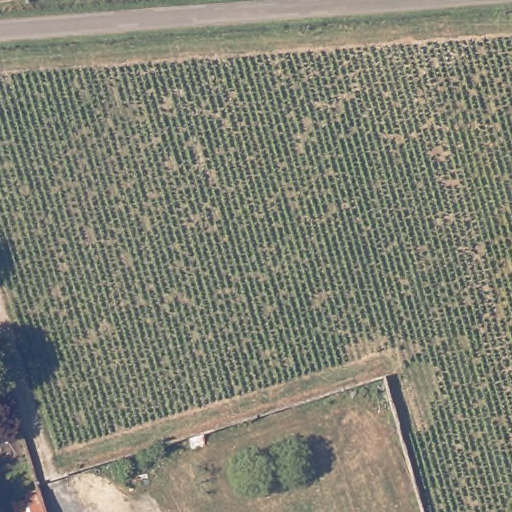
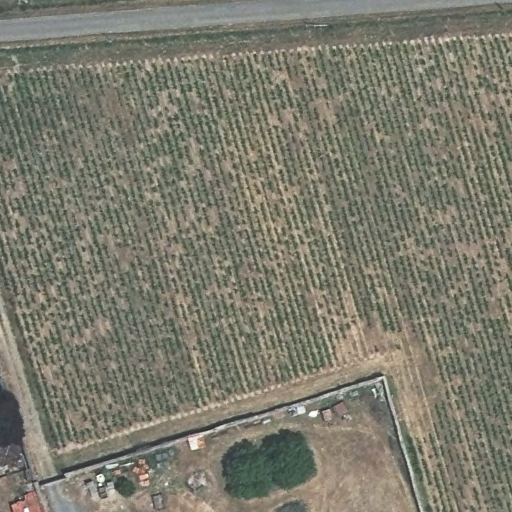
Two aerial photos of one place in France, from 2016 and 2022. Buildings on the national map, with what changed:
unchanged [(29,498),(44,495),(50,512),(20,512),(18,505),(30,502),(29,498)]

